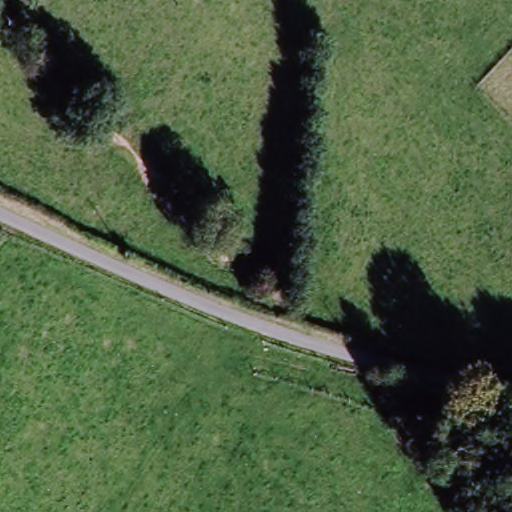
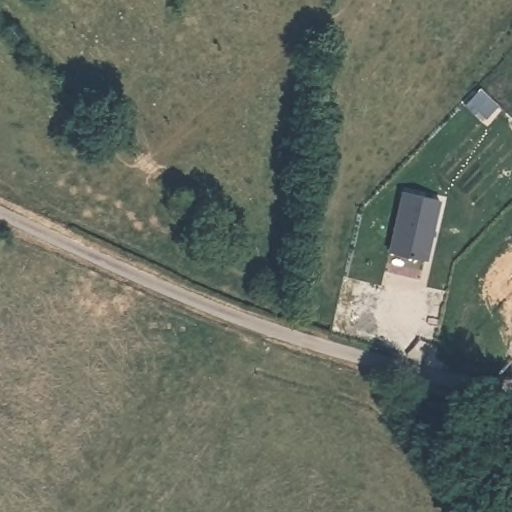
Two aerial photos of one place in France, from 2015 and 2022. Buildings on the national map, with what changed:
new [(440,199),(427,260),(387,252),(400,192),(440,199)]

